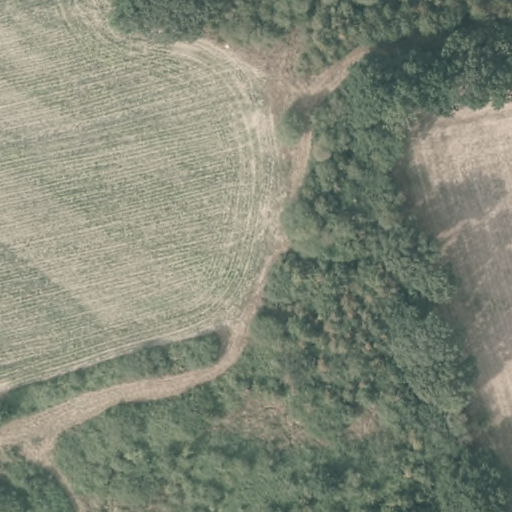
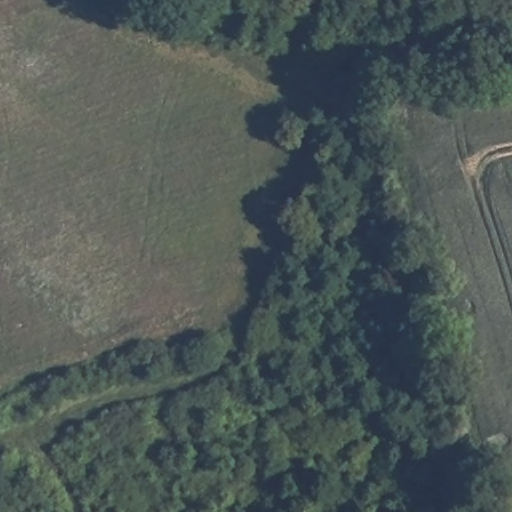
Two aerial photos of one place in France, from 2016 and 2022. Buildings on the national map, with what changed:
[]

